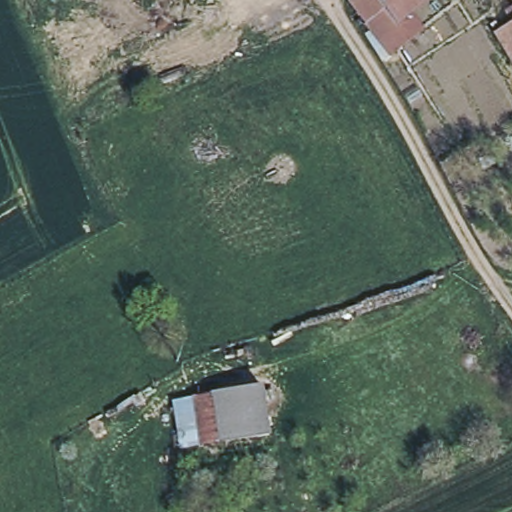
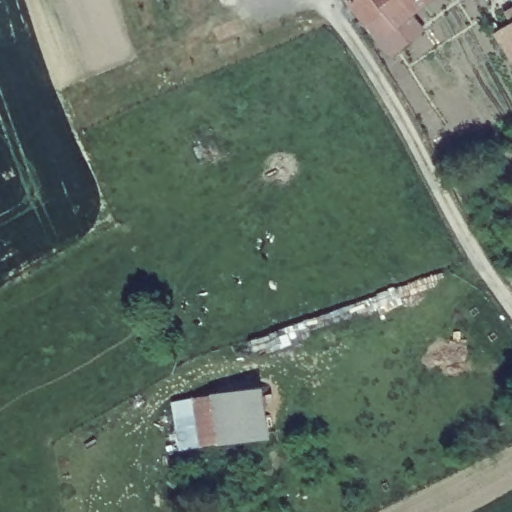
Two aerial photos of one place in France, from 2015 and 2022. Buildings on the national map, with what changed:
unchanged [(372,22),(354,0),(432,0),(431,1),(401,26),(400,24),(381,38),(370,24),(372,22)]
unchanged [(512,5),(512,63),(494,32),(512,21),(505,10),(512,5)]
unchanged [(248,390),(259,440),(214,450),(202,399),(248,390)]

